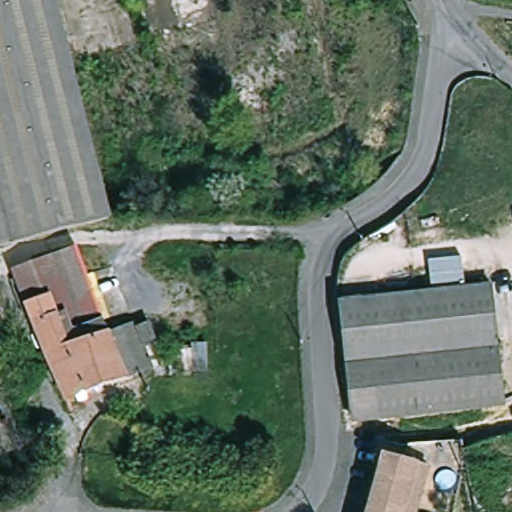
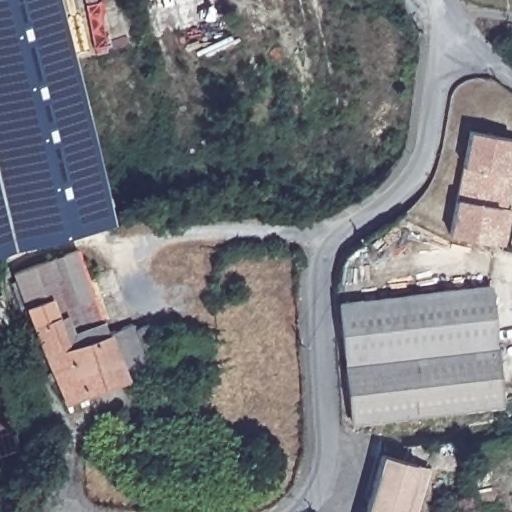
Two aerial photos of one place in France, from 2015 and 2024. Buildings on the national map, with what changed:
unchanged [(52,0),(107,222),(0,250),(0,0),(52,0)]
new [(512,176),(511,176),(506,208),(511,209),(505,246),(492,243),(447,236),(454,198),(461,165),(468,131),(512,138),(512,176)]
unchanged [(78,400),(64,406),(11,275),(43,264),(73,252),(106,335),(125,381),(78,400)]
unchanged [(505,407),(355,425),(341,307),(449,294),(491,288),(505,407)]
unchanged [(4,323),(0,324),(0,306),(4,323)]
unchanged [(149,371),(142,374),(125,381),(106,335),(124,327),(130,325),(149,371)]
unchanged [(17,451),(0,455),(0,382),(17,451)]
unchanged [(376,458),(378,453),(391,457),(412,463),(424,466),(411,512),(361,512),(376,458)]

